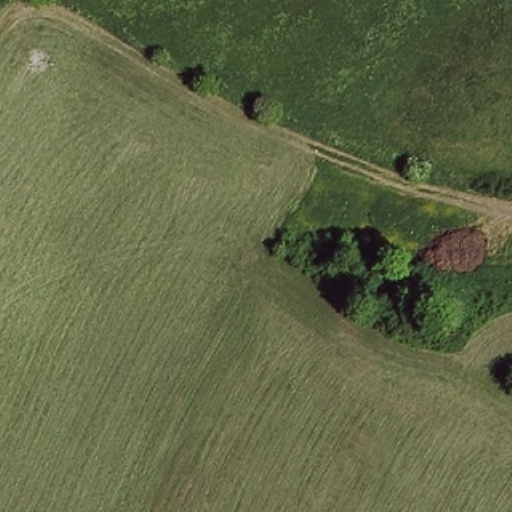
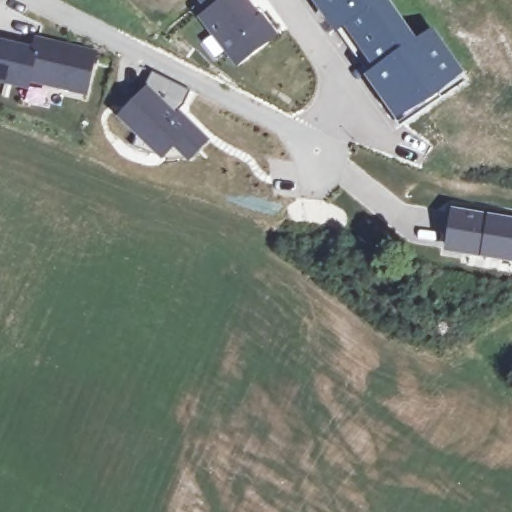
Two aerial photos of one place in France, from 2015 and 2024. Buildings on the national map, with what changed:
new [(278,36),(236,68),(198,19),(206,13),(198,2),(201,0),(243,0),(256,17),(261,14),(278,36)]
new [(388,3),(411,33),(425,22),(462,75),(397,126),(354,80),(372,65),(349,26),(337,36),(314,0),(391,0),(388,3)]
new [(30,84),(29,90),(0,84),(0,40),(33,46),(35,36),(98,50),(88,96),(30,84)]
new [(184,104),(176,114),(209,141),(189,162),(173,149),(163,160),(118,117),(153,73),(189,90),(184,104)]
new [(446,250),(452,209),(488,215),(512,219),(512,262),(481,256),(446,250)]

